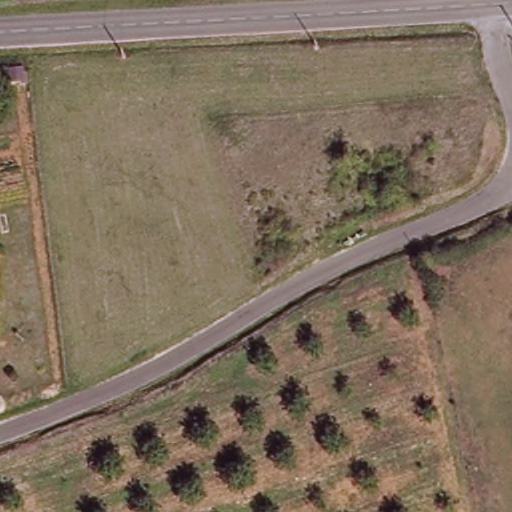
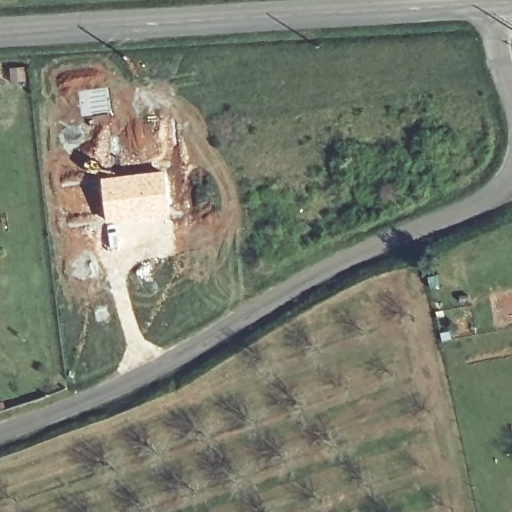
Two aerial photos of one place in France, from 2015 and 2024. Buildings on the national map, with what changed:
new [(163,170),(169,214),(105,223),(100,177),(163,170)]
new [(495,326),(490,295),(512,291),(512,323),(495,326)]

